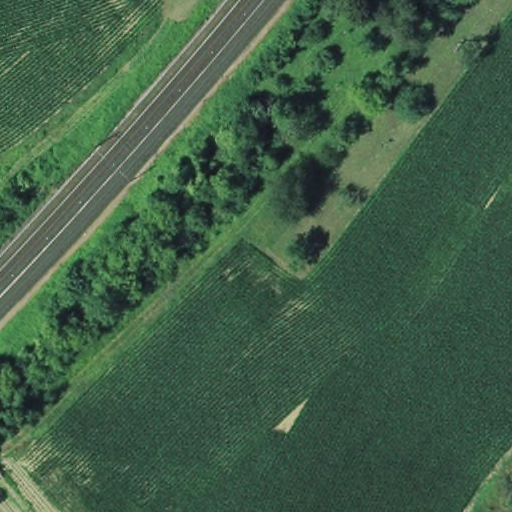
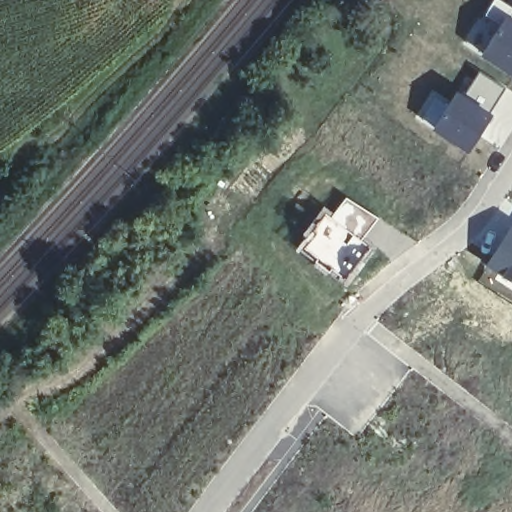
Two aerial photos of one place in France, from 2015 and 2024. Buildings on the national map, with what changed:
new [(482,14),(492,0),(503,0),(512,5),(512,74),(479,52),(497,24),(482,14)]
new [(447,100),(457,86),(463,91),(478,69),(505,87),(490,110),(492,112),(467,150),(417,114),(432,90),(447,100)]
new [(303,234),(300,231),(323,204),(332,210),(345,194),(378,216),(361,240),(369,246),(342,279),(293,247),(303,234)]
new [(512,281),(483,262),(512,219),(512,281)]

